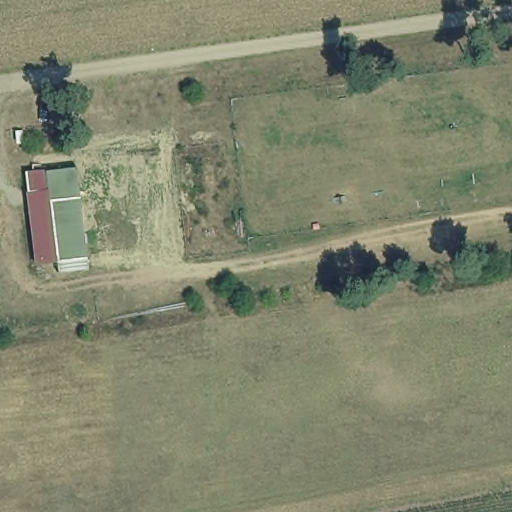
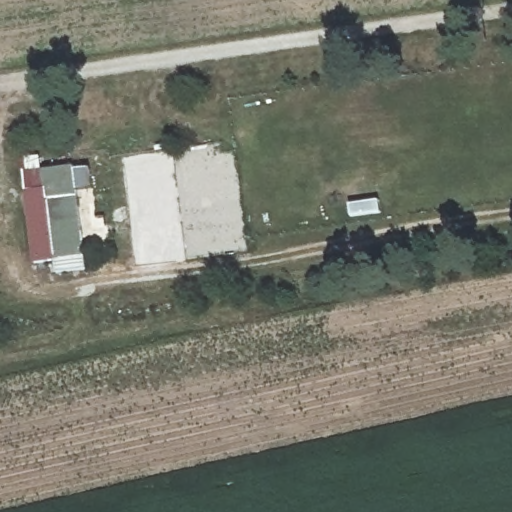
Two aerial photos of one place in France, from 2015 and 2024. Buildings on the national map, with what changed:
unchanged [(85,256),(55,260),(44,169),(74,167),(85,256)]

